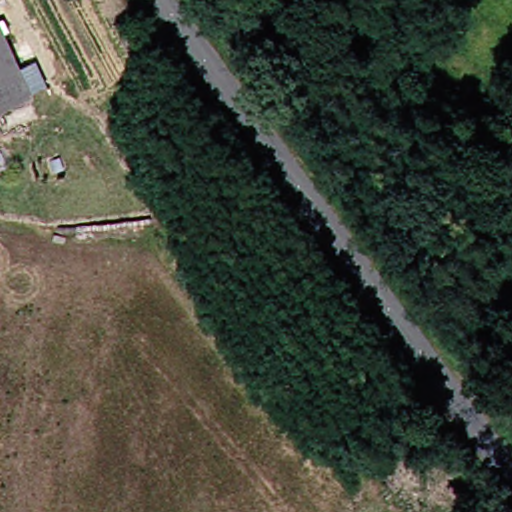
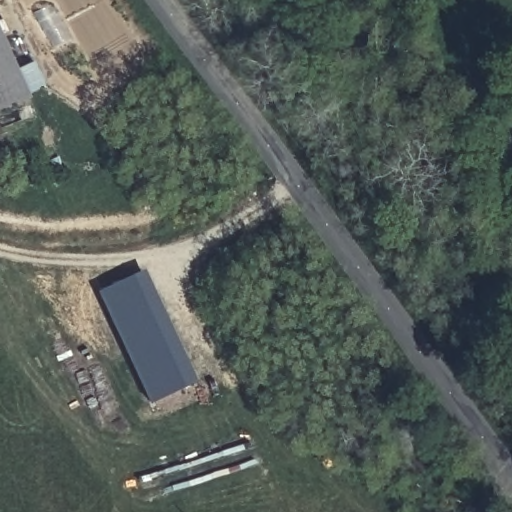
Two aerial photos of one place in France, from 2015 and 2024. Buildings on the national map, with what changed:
unchanged [(0,106),(0,18),(36,90),(0,106)]
new [(201,378),(155,400),(102,288),(147,267),(201,378)]

